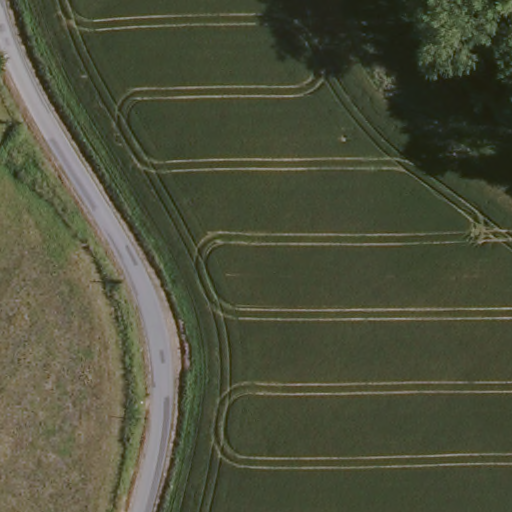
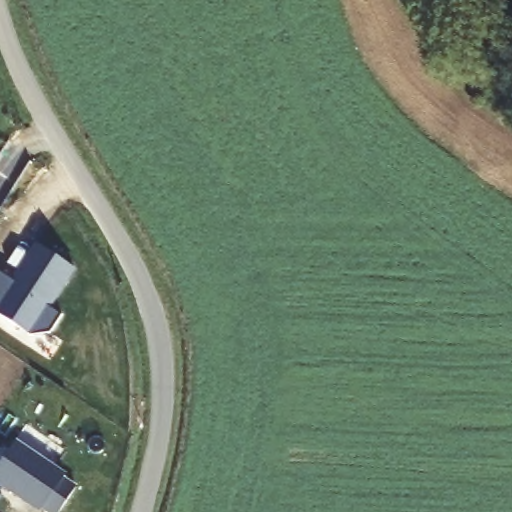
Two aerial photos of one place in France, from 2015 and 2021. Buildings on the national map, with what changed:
new [(4,278),(10,282),(36,242),(74,265),(49,304),(62,312),(50,330),(31,333),(0,314),(0,270),(7,274),(4,278)]
new [(63,472),(61,476),(74,485),(57,512),(51,512),(42,506),(39,510),(0,484),(0,460),(13,440),(63,472)]

